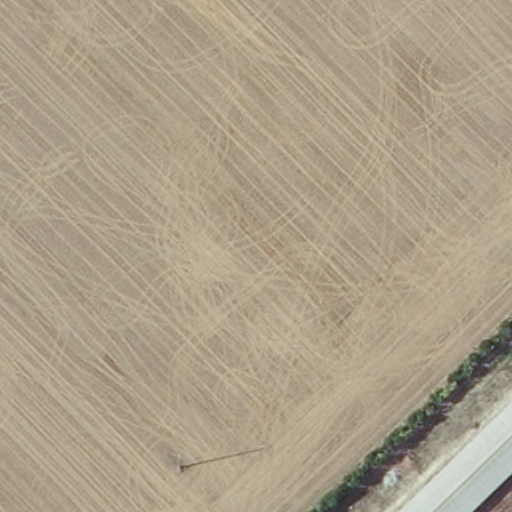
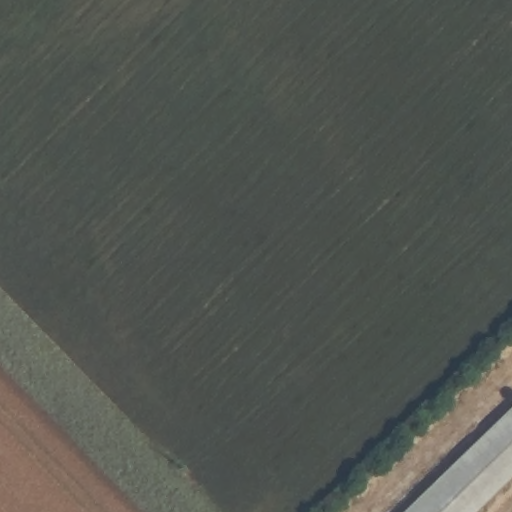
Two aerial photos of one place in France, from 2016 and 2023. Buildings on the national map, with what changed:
unchanged [(512,475),(474,512),(400,512),(512,405),(512,475)]

